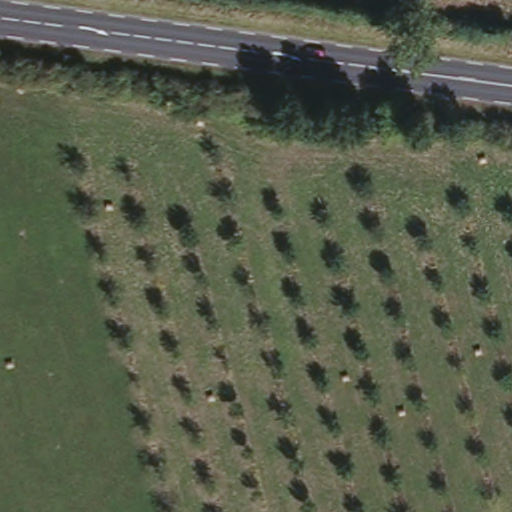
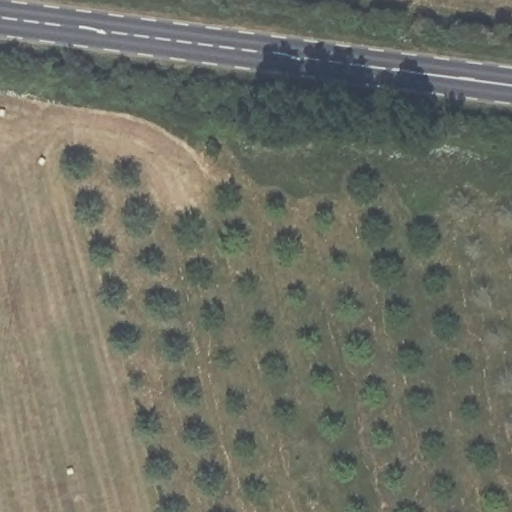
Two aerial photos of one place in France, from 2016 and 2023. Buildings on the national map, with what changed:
[]

